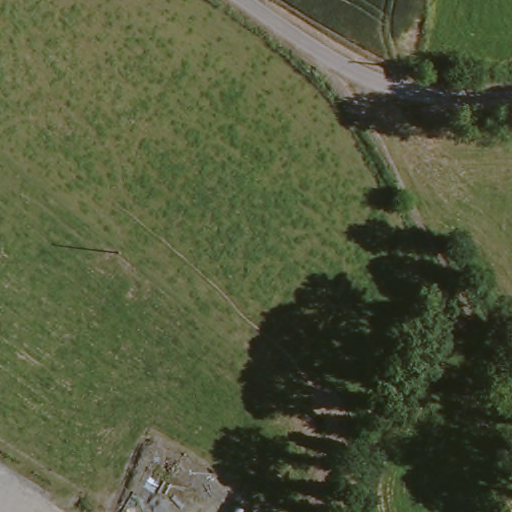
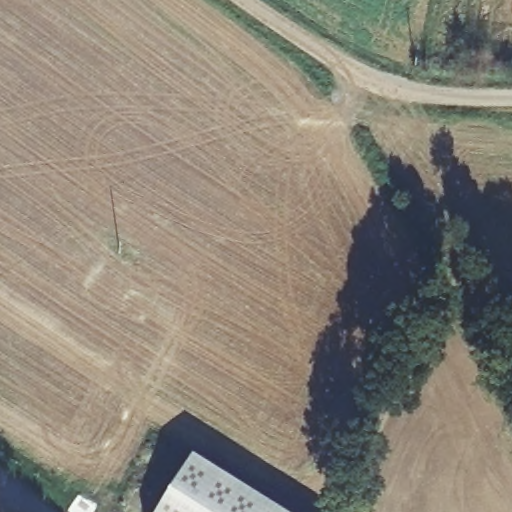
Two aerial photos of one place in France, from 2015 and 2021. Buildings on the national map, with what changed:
new [(278,512),(160,512),(193,460),(278,512)]

